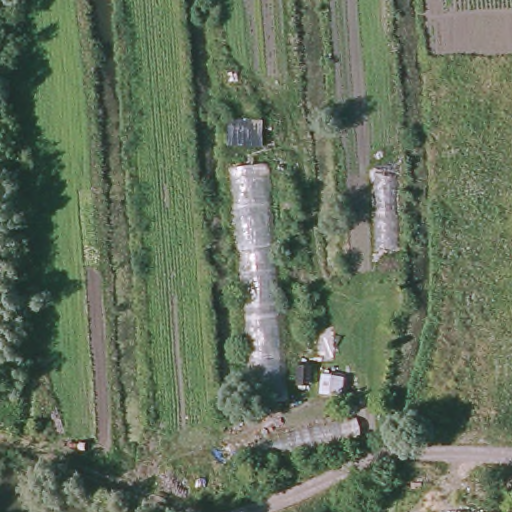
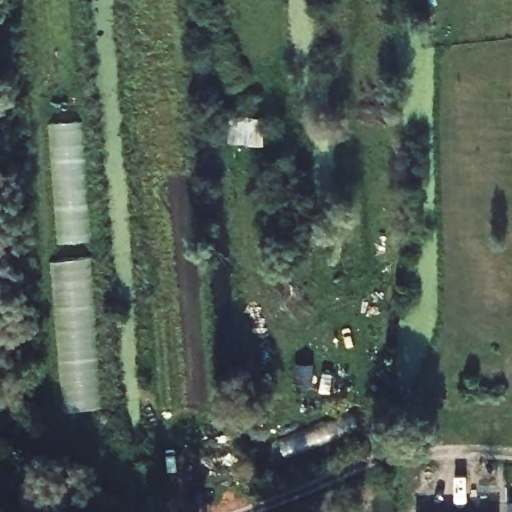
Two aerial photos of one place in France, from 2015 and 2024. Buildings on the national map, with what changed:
new [(92,238),(62,241),(50,122),(85,119),(92,238)]
unchanged [(230,171),(272,169),(291,405),(252,411),(230,171)]
new [(105,406),(68,412),(50,260),(93,256),(105,406)]
unchanged [(355,415),(362,440),(264,465),(257,439),(355,415)]
unchanged [(512,509),(512,512),(510,512),(510,509),(512,509)]

